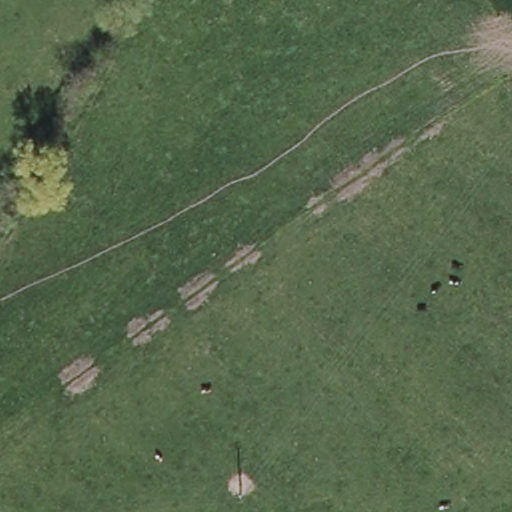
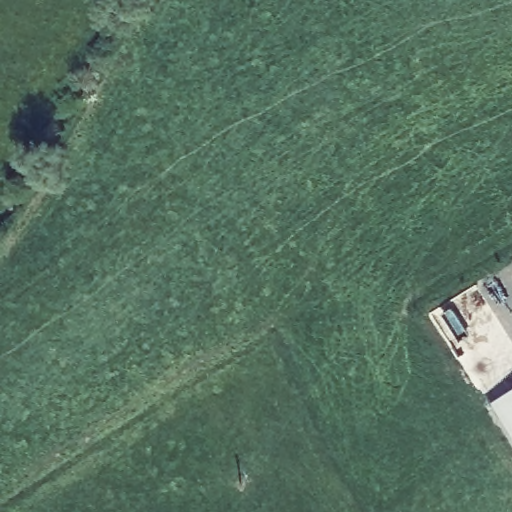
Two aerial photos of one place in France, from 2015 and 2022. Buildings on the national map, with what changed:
new [(487,410),(512,394),(512,450),(487,410)]

